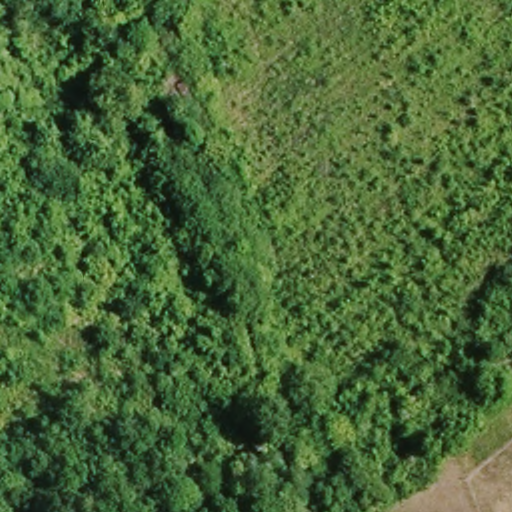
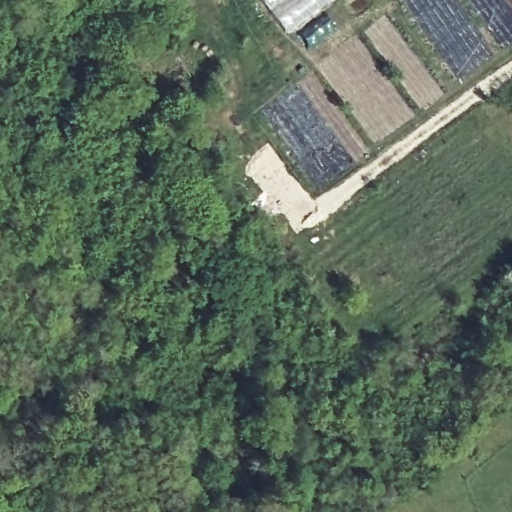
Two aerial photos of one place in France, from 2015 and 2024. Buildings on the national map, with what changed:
new [(315,18),(289,36),(262,0),(337,0),(315,18)]

